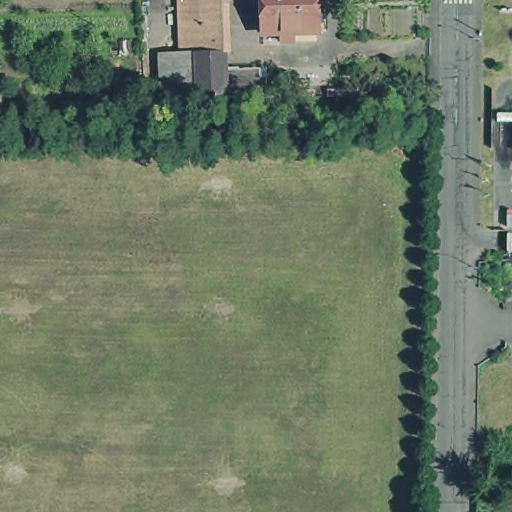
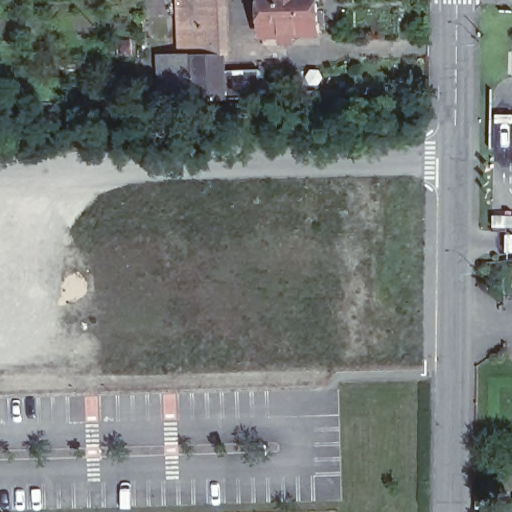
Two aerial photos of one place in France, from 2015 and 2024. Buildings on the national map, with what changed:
unchanged [(172,46),(185,45),(182,0),(223,0),(225,23),(227,67),(246,66),(263,65),(263,88),(247,88),(228,89),(200,90),(175,91),(163,91),(163,76),(162,61),(162,46),(172,46)]
unchanged [(301,34),(301,40),(286,41),(286,34),(270,35),(268,0),(323,0),(325,32),(301,34)]
unchanged [(512,213),(512,225),(495,225),(495,213),(512,213)]

